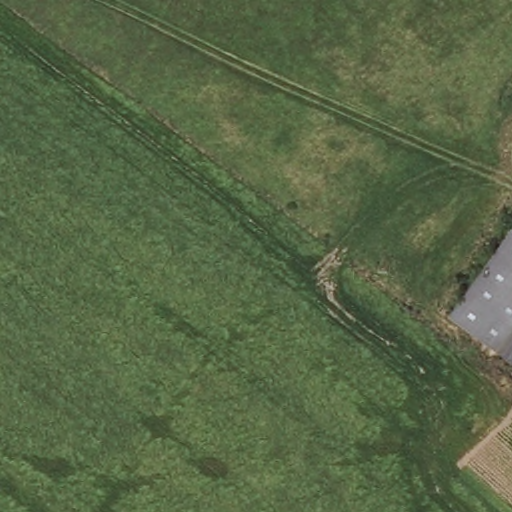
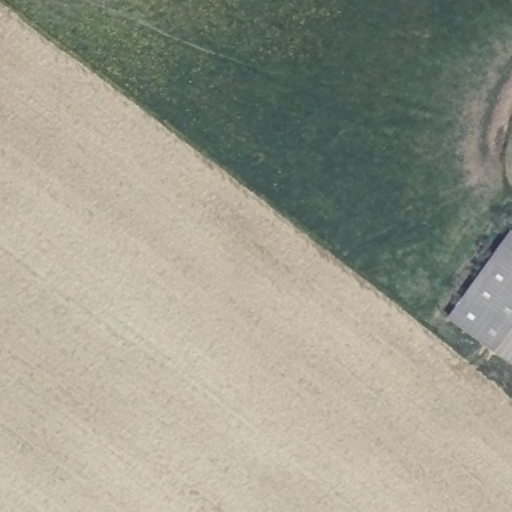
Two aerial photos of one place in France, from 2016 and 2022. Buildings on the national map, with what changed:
unchanged [(449,322),(509,237),(512,239),(512,366),(449,322)]

